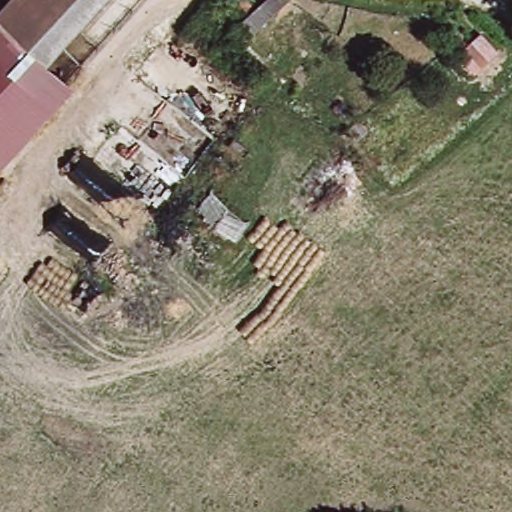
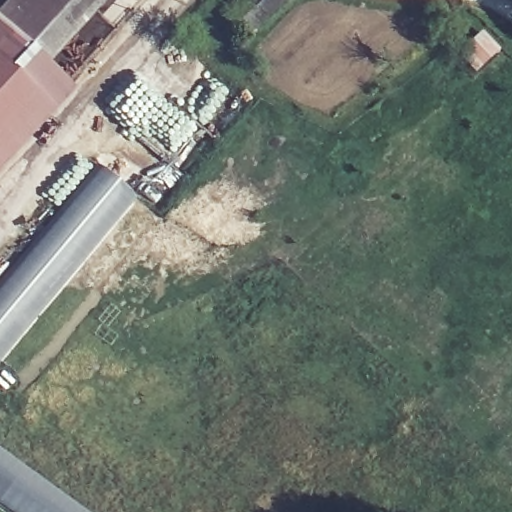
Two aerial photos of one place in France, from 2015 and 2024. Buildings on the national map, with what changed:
unchanged [(0,0),(98,0),(42,61),(0,25),(0,0)]
unchanged [(0,25),(42,61),(69,86),(0,160),(0,25)]
new [(136,195),(0,362),(0,281),(98,163),(136,195)]
new [(10,512),(0,505),(0,446),(92,512),(10,512)]

